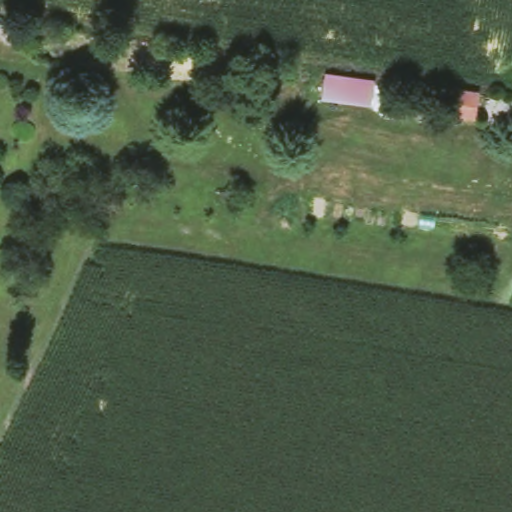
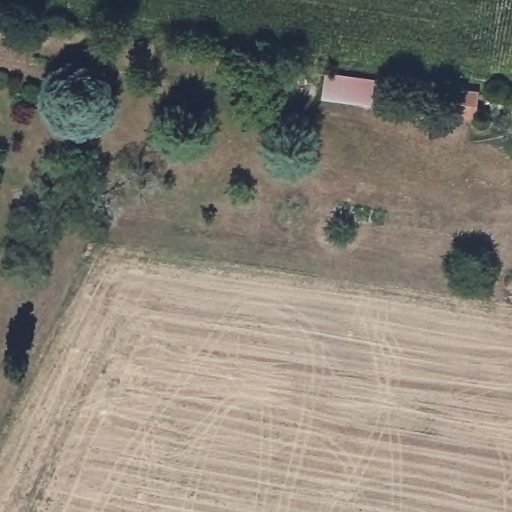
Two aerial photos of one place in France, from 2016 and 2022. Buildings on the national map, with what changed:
unchanged [(344,99),(324,97),(326,72),(376,78),(372,104),(344,99)]
unchanged [(455,116),(446,116),(449,86),(479,88),(475,119),(455,116)]

